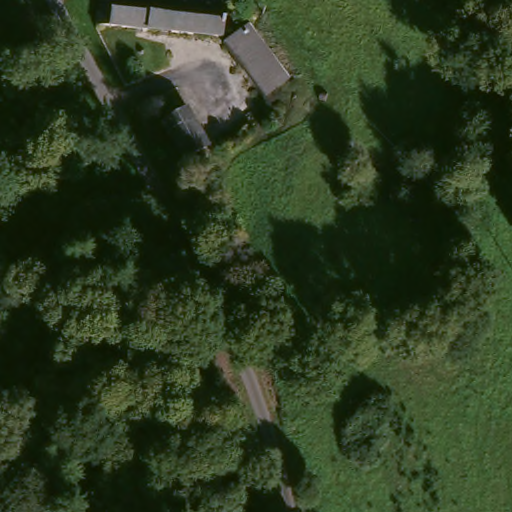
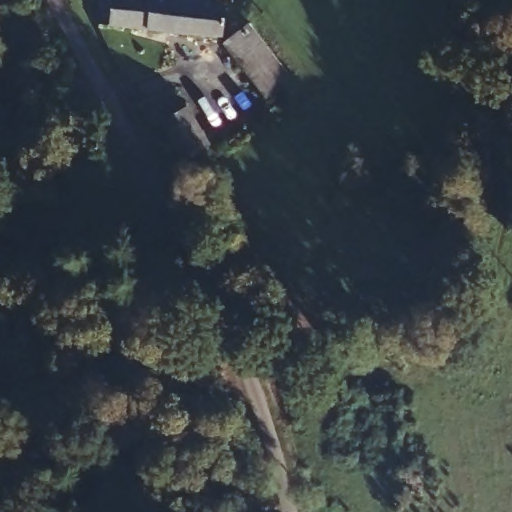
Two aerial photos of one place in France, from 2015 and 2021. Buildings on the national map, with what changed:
unchanged [(163,2),(163,0),(201,0),(201,1),(210,0),(219,0),(221,31),(100,37),(97,6),(163,2)]
unchanged [(179,165),(156,127),(179,113),(204,150),(179,165)]

